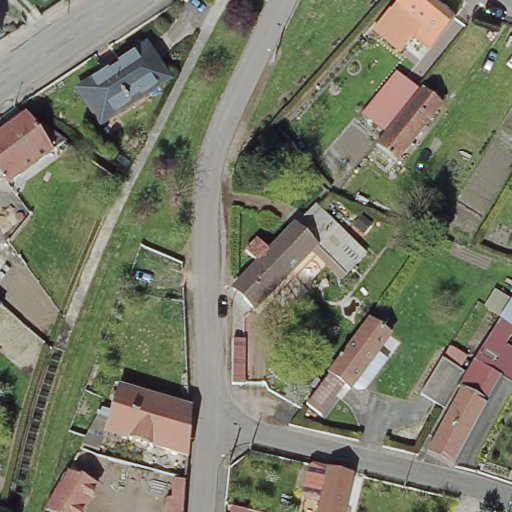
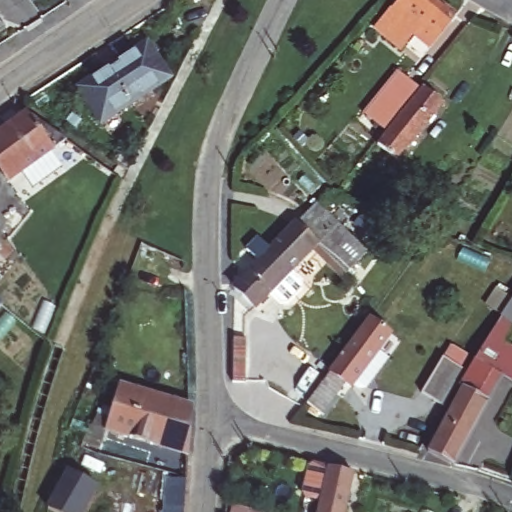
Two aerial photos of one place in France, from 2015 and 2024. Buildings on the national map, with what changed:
unchanged [(407,36),(398,47),(376,30),(395,6),(400,0),(444,0),(460,13),(436,45),(424,36),(419,45),(407,36)]
unchanged [(0,35),(0,27),(3,33),(0,35)]
unchanged [(80,90),(148,45),(169,79),(103,124),(80,90)]
unchanged [(372,112),(384,96),(399,77),(417,92),(403,111),(391,126),(372,112)]
unchanged [(427,88),(448,103),(403,161),(383,146),(427,88)]
unchanged [(0,134),(28,115),(29,117),(33,115),(68,140),(55,149),(8,182),(0,172),(0,134)]
unchanged [(349,236),(329,258),(320,250),(315,245),(295,225),(314,204),(349,236)]
unchanged [(253,308),(234,290),(295,225),(315,245),(253,308)]
unchanged [(256,239),(268,249),(256,262),(244,251),(256,239)]
unchanged [(0,298),(11,308),(0,322),(0,298)]
unchanged [(504,352),(488,343),(512,301),(512,338),(504,352)]
unchanged [(326,385),(336,372),(374,317),(394,331),(355,387),(351,383),(342,395),(326,385)]
unchanged [(246,340),(245,383),(233,383),(234,339),(246,340)]
unchanged [(468,384),(464,382),(472,370),(488,343),(504,352),(512,356),(512,375),(506,372),(493,397),(468,384)]
unchanged [(429,392),(450,357),(472,370),(464,382),(451,405),(429,392)]
unchanged [(457,461),(433,447),(468,384),(493,397),(457,461)]
unchanged [(113,444),(96,440),(121,397),(124,397),(128,387),(201,407),(198,453),(163,445),(162,447),(138,440),(139,438),(115,432),(113,444)]
unchanged [(85,512),(67,512),(53,503),(73,467),(102,483),(85,512)]
unchanged [(359,473),(348,512),(323,512),(334,468),(359,473)]
unchanged [(171,496),(174,478),(186,480),(183,512),(165,512),(166,496),(171,496)]

